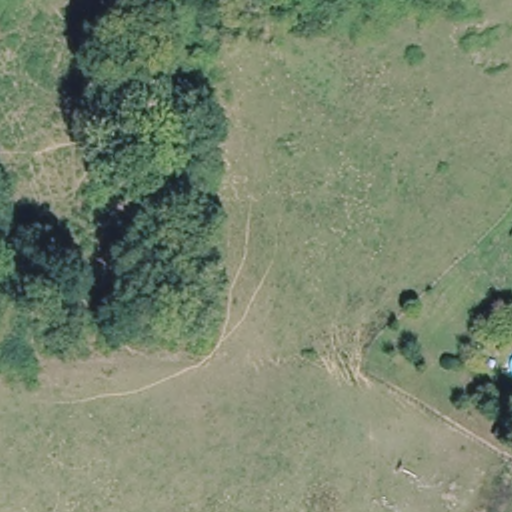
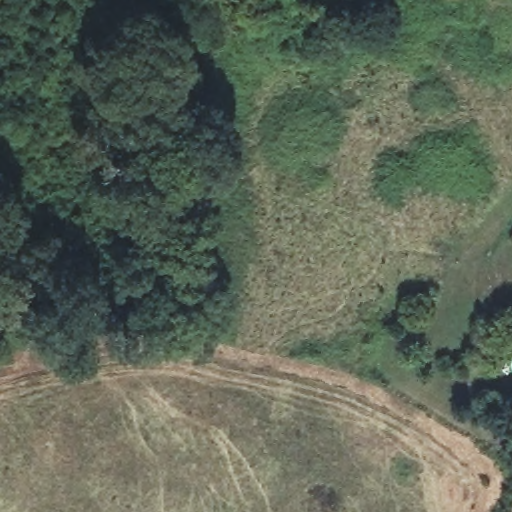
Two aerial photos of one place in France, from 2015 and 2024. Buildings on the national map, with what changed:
[]

